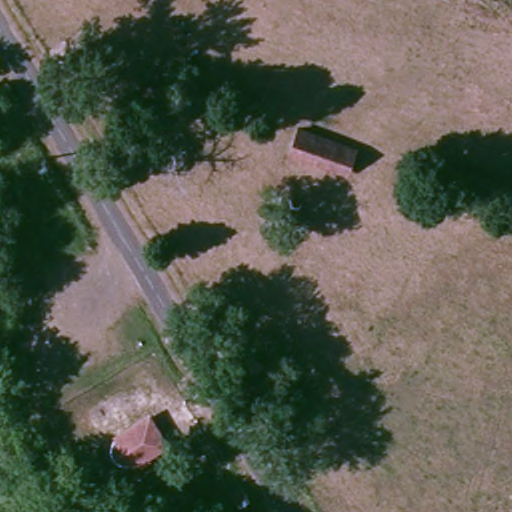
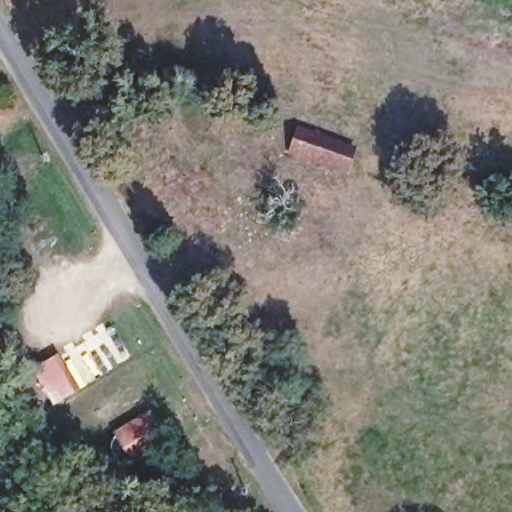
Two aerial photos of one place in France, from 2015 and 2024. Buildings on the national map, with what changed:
unchanged [(351,144),(340,170),(289,148),(298,125),(351,144)]
new [(31,372),(58,355),(78,387),(53,404),(31,372)]
unchanged [(171,432),(136,455),(128,458),(121,455),(117,452),(114,445),(114,437),(118,431),(156,406),(171,432)]

